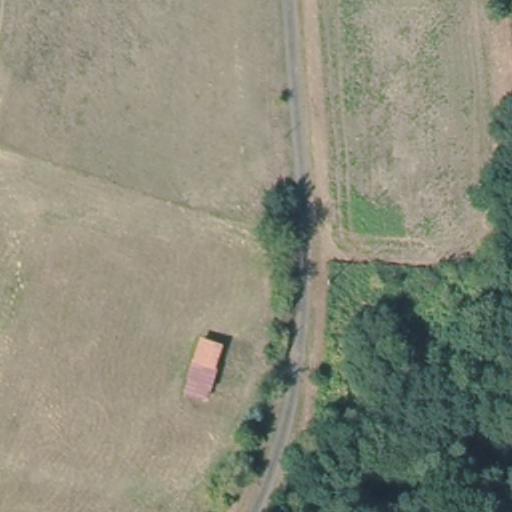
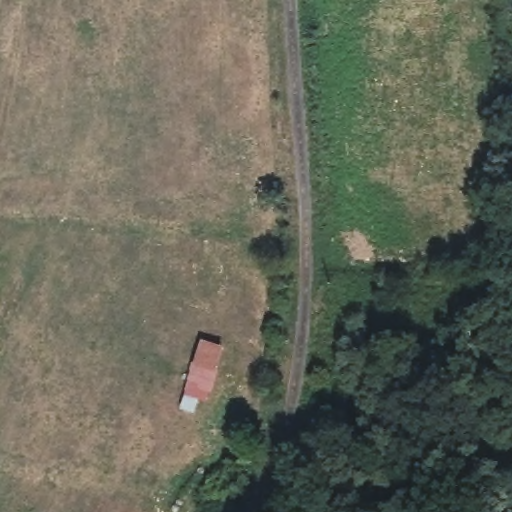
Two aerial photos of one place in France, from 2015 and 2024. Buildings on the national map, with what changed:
unchanged [(224,344),(216,372),(206,401),(184,395),(193,363),(200,338),(224,344)]

